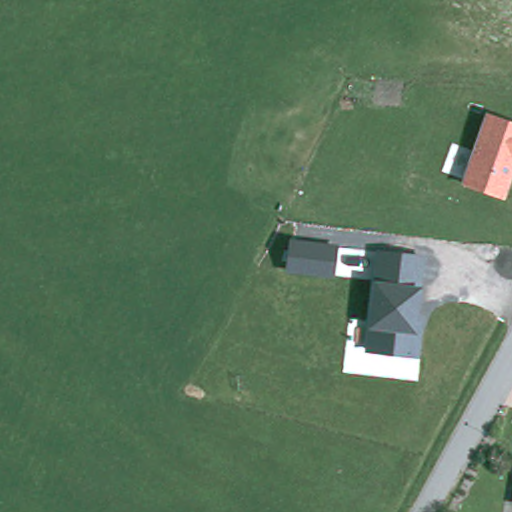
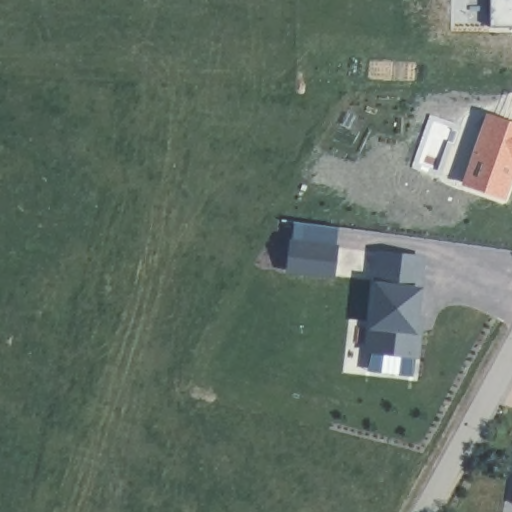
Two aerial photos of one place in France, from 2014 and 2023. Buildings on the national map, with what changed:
new [(488,0),(512,0),(512,27),(488,27),(488,0)]
unchanged [(512,174),(504,198),(461,184),(485,111),(512,121),(512,174)]
unchanged [(338,244),(333,279),(284,271),(288,236),(338,244)]
unchanged [(424,254),(421,286),(418,313),(423,315),(419,357),(365,352),(367,325),(372,282),(377,248),(424,254)]

